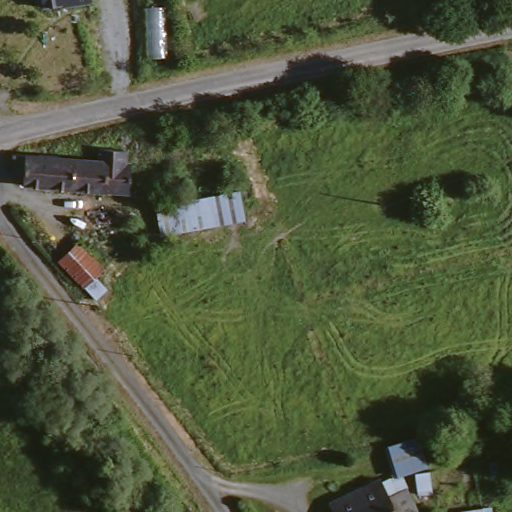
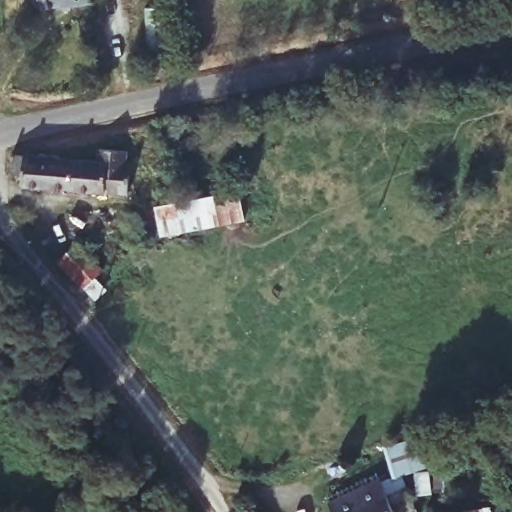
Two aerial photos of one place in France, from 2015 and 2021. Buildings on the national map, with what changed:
unchanged [(71,2),(43,5),(43,2),(39,0),(91,0),(91,3),(72,5),(71,2)]
unchanged [(23,174),(26,159),(98,167),(100,149),(128,152),(126,170),(139,172),(136,199),(33,190),(34,179),(23,178),(23,174)]
unchanged [(165,234),(161,201),(222,197),(224,228),(165,234)]
unchanged [(89,302),(52,259),(69,247),(79,236),(106,262),(93,273),(106,287),(89,302)]
unchanged [(423,478),(388,484),(382,451),(391,449),(411,446),(417,445),(423,478)]
unchanged [(377,486),(389,512),(335,512),(333,506),(377,486)]
unchanged [(482,512),(466,512),(482,509),(482,512)]

